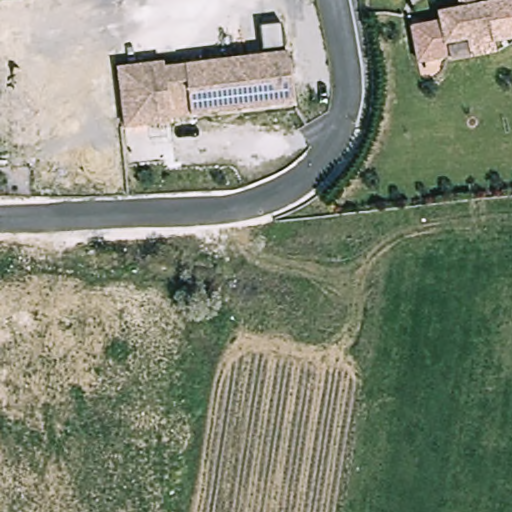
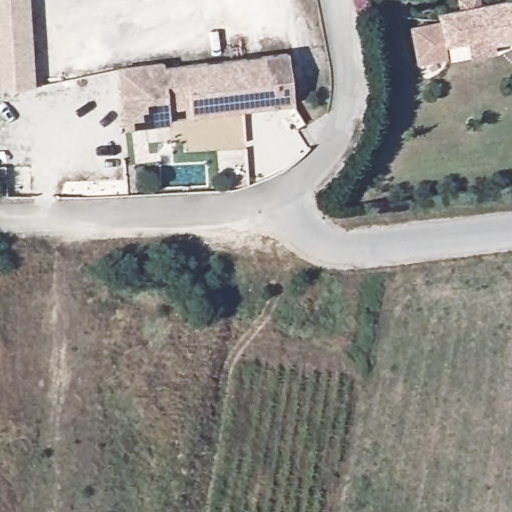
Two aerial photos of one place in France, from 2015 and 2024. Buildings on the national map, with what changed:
new [(0,89),(0,0),(28,0),(33,86),(0,89)]
unchanged [(449,44),(442,12),(502,0),(512,0),(512,40),(497,44),(495,35),(449,44)]
unchanged [(449,44),(451,59),(418,66),(410,27),(443,21),(449,44)]
unchanged [(172,61),(173,65),(292,53),(297,105),(175,118),(176,124),(128,129),(123,65),(172,61)]

